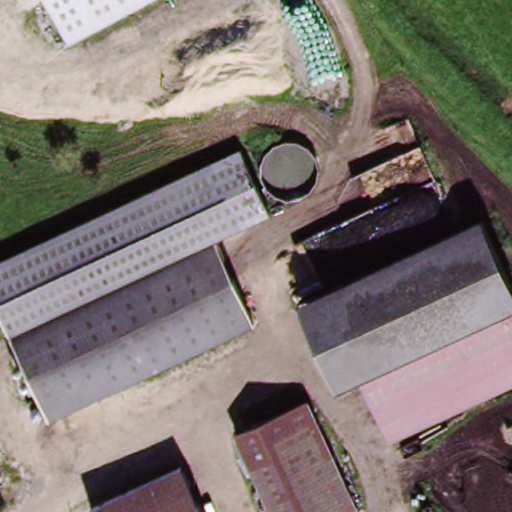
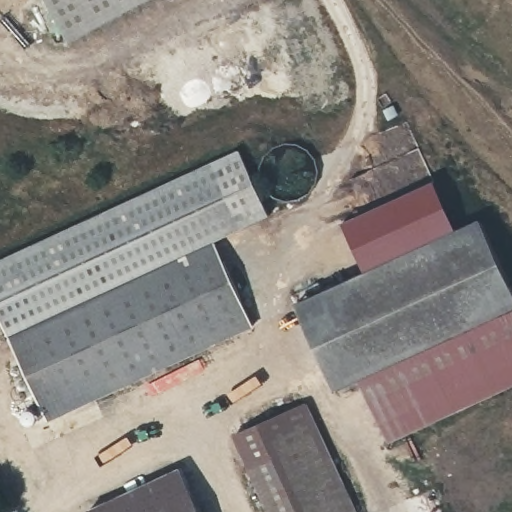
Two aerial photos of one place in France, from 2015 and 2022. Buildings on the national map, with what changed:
unchanged [(68,43),(46,0),(149,0),(68,43)]
unchanged [(210,167),(240,151),(271,217),(240,232),(210,167)]
unchanged [(210,167),(240,232),(215,244),(256,331),(120,394),(109,369),(40,400),(33,403),(28,396),(35,392),(0,312),(0,265),(210,167)]
new [(457,232),(365,276),(343,221),(434,179),(457,232)]
unchanged [(512,309),(512,313),(334,397),(295,313),(307,304),(472,225),(512,309)]
unchanged [(512,386),(390,442),(361,384),(512,313),(512,386)]
unchanged [(51,425),(40,400),(109,369),(120,394),(51,425)]
unchanged [(301,413),(348,512),(262,512),(231,446),(301,413)]
unchanged [(116,512),(183,481),(197,512),(116,512)]

